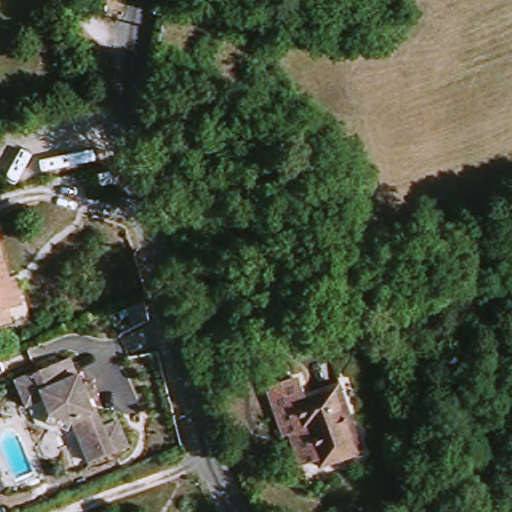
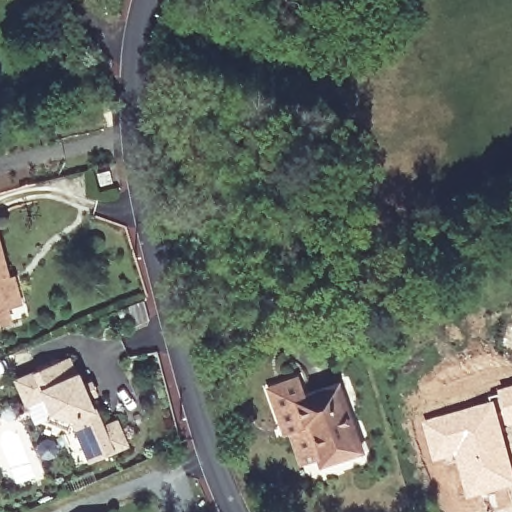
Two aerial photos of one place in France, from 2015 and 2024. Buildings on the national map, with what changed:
unchanged [(4,283),(9,282),(16,308),(11,310),(4,312),(7,324),(0,326),(0,269),(4,283)]
unchanged [(47,426),(52,417),(45,402),(27,410),(16,385),(69,362),(77,379),(79,378),(84,390),(92,386),(97,398),(89,402),(94,413),(96,413),(104,431),(117,425),(127,450),(90,466),(72,425),(69,435),(47,426)]
unchanged [(321,466),(307,427),(302,428),(292,400),(338,385),(362,452),(321,466)]
new [(512,425),(504,427),(498,398),(496,391),(512,386),(512,425)]
new [(504,427),(512,457),(512,487),(467,500),(456,457),(433,462),(422,421),(498,398),(504,427)]

